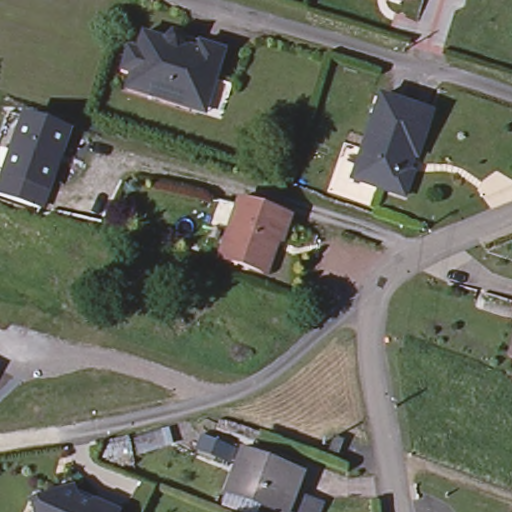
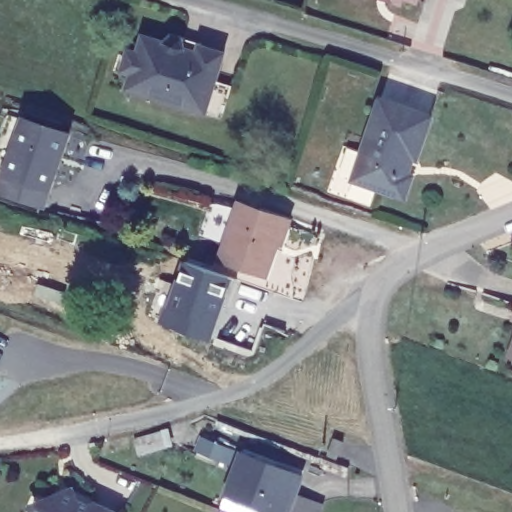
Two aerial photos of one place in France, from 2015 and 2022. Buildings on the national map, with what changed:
unchanged [(406,1),(402,7),(374,0),(421,0),(418,6),(406,1)]
unchanged [(134,27),(155,35),(164,27),(172,31),(190,39),(214,49),(203,76),(186,95),(180,107),(117,82),(122,67),(112,64),(119,41),(128,44),(134,27)]
unchanged [(223,85),(210,120),(180,107),(186,95),(203,76),(223,85)]
unchanged [(428,115),(414,157),(411,156),(405,172),(410,175),(402,196),(350,179),(377,98),(428,115)]
unchanged [(67,130),(43,204),(0,189),(25,116),(67,130)]
unchanged [(285,217),(266,274),(219,258),(238,201),(285,217)]
new [(211,341),(157,323),(165,301),(169,303),(176,280),(179,281),(185,262),(232,278),(211,341)]
unchanged [(510,355),(512,350),(512,355),(510,355)]
unchanged [(287,512),(286,511),(225,489),(241,448),(302,471),(295,487),(325,498),(320,512),(287,512)]
unchanged [(75,495),(75,497),(88,504),(95,501),(117,512),(35,512),(32,503),(55,495),(57,492),(63,490),(75,495)]

